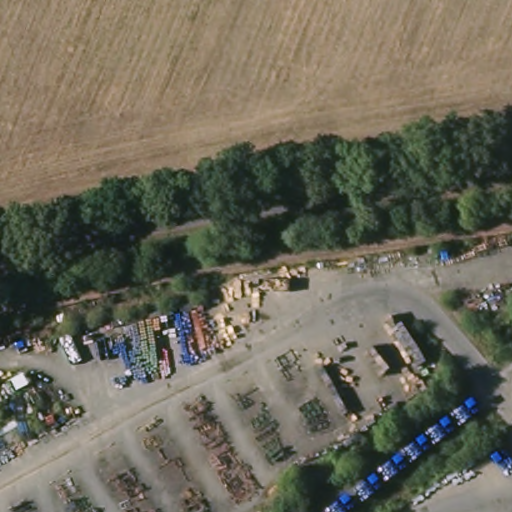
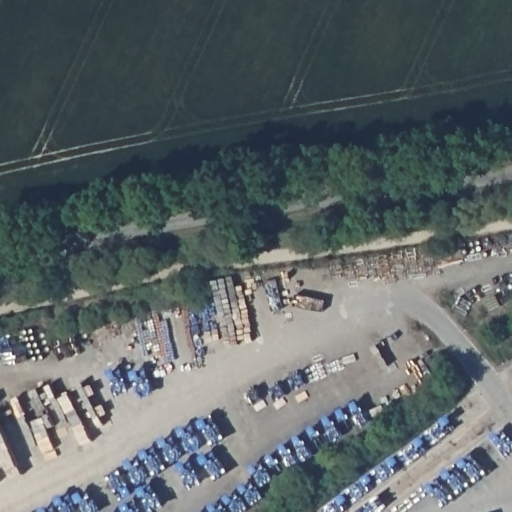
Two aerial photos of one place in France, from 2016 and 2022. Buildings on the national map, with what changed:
[]

